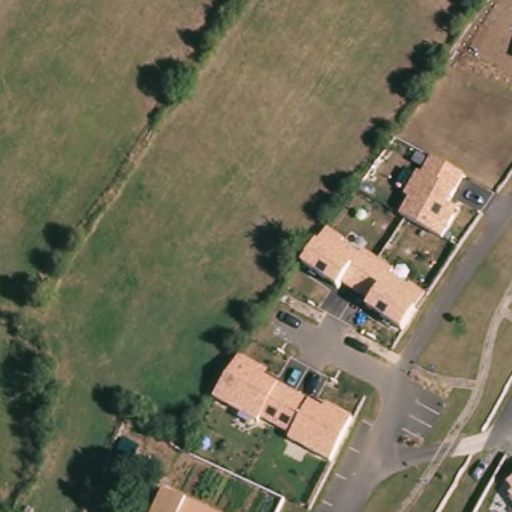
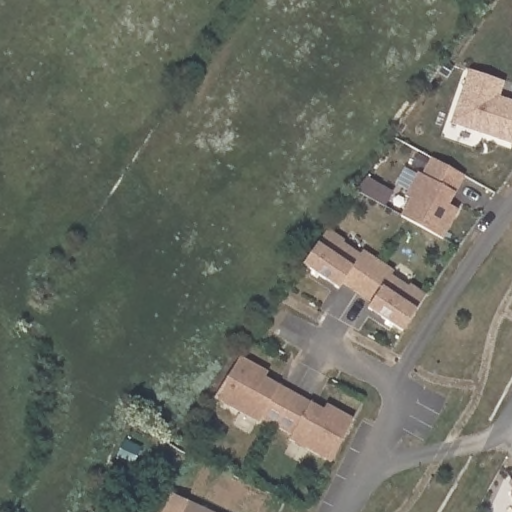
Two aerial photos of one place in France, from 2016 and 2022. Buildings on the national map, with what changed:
new [(468,70),(505,81),(501,96),(512,100),(512,144),(451,123),(468,70)]
unchanged [(402,217),(412,200),(405,196),(417,175),(420,176),(430,159),(465,179),(449,206),(458,211),(442,239),(402,217)]
unchanged [(368,309),(372,301),(343,283),(339,288),(302,265),(317,243),(327,229),(343,240),(341,244),(359,254),(361,251),(392,268),(387,276),(406,286),(408,282),(425,292),(400,330),(368,309)]
unchanged [(289,441),(291,437),(261,420),(259,423),(212,399),(238,355),(268,370),(264,376),(325,407),(327,403),(354,418),(330,462),(289,441)]
unchanged [(512,481),(512,486),(509,483),(512,481)]
unchanged [(186,500),(212,512),(152,512),(162,488),(186,500)]
unchanged [(512,491),(512,499),(508,495),(512,491)]

